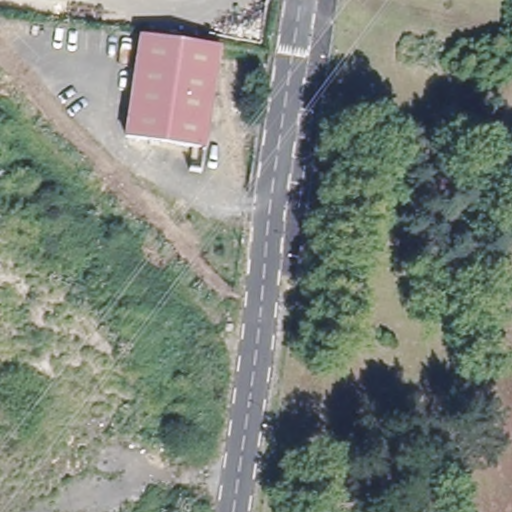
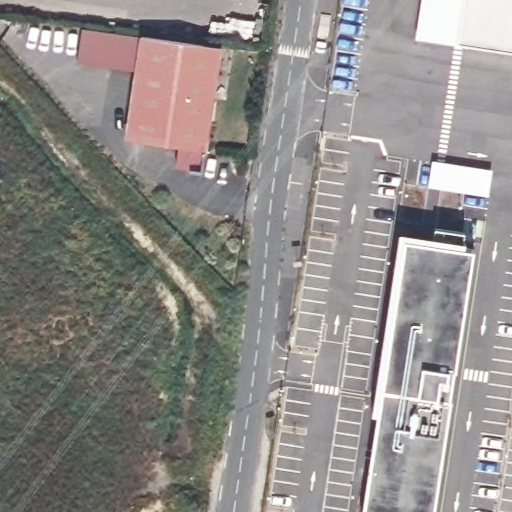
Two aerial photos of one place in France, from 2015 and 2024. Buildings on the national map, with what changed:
new [(512,52),(465,45),(414,39),(419,0),(512,0),(512,52)]
new [(83,30),(144,36),(139,70),(79,62),(83,30)]
unchanged [(139,70),(144,36),(221,47),(205,151),(128,140),(139,70)]
new [(431,160),(494,169),(489,198),(426,187),(431,160)]
new [(371,413),(381,336),(398,230),(452,237),(454,229),(466,230),(464,245),(474,247),(450,421),(435,512),(361,512),(374,413),(371,413)]

